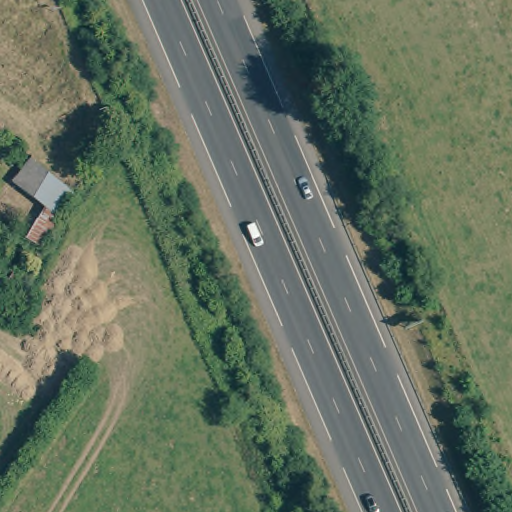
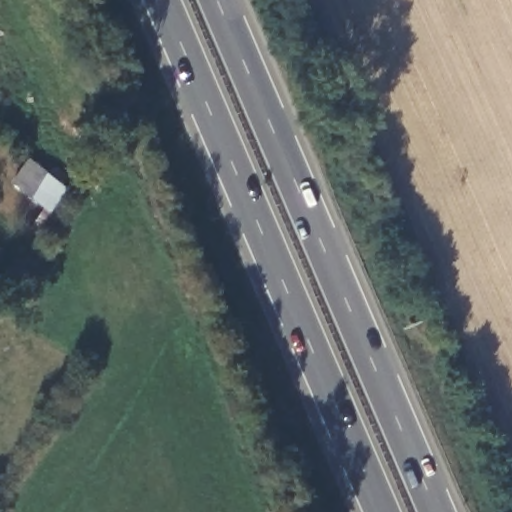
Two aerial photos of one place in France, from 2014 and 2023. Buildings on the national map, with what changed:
unchanged [(75,195),(43,249),(30,240),(46,209),(36,201),(42,190),(22,177),(30,161),(75,195)]

